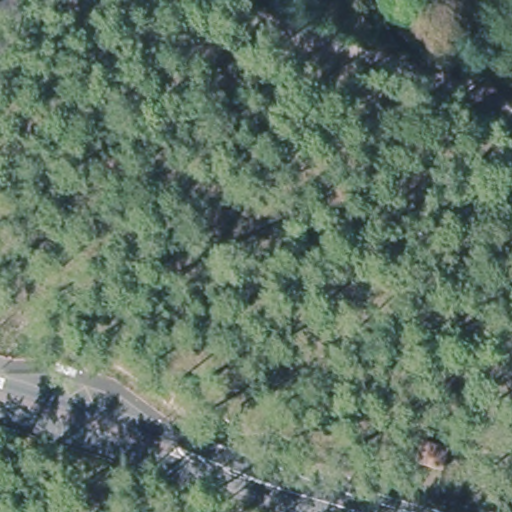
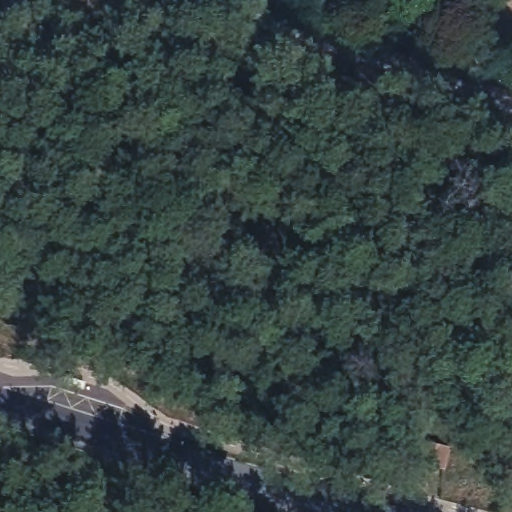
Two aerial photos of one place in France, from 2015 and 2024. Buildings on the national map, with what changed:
[]

